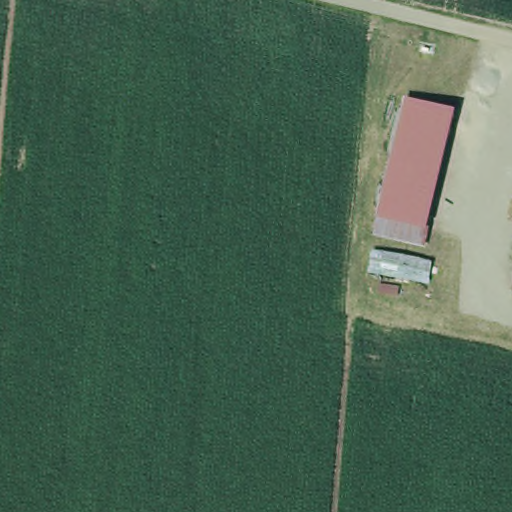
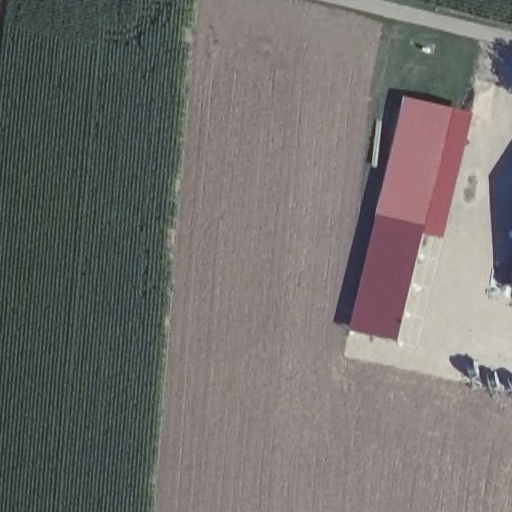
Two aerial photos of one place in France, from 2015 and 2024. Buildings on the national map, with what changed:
unchanged [(370,208),(400,91),(461,107),(424,222),(370,208)]
new [(396,343),(347,331),(375,212),(424,222),(396,343)]
unchanged [(512,280),(512,289),(510,289),(512,280)]

